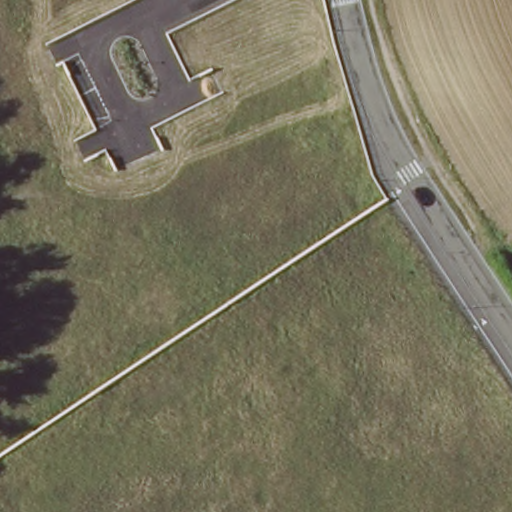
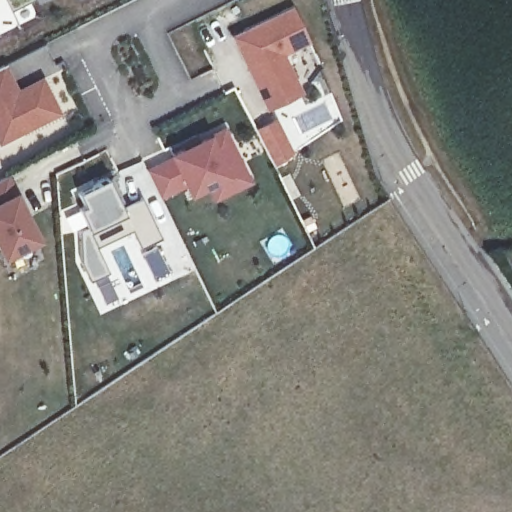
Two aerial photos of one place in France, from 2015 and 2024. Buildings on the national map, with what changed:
new [(291,6),(308,42),(284,56),(303,95),(266,111),(229,37),(291,6)]
new [(61,115),(2,145),(0,141),(0,70),(14,64),(23,81),(18,83),(23,92),(44,82),(61,115)]
new [(281,121),(297,157),(276,167),(259,131),(281,121)]
new [(190,187),(163,200),(150,174),(177,161),(176,157),(190,151),(187,146),(198,141),(200,146),(227,132),(246,171),(195,196),(190,187)]
new [(212,187),(246,171),(253,185),(219,201),(212,187)]
new [(5,174),(13,193),(15,192),(41,242),(1,262),(0,261),(0,177),(5,174)]
new [(106,179),(120,207),(140,199),(159,237),(138,247),(130,230),(95,246),(108,273),(88,283),(80,265),(78,231),(85,228),(77,210),(83,207),(77,194),(106,179)]

